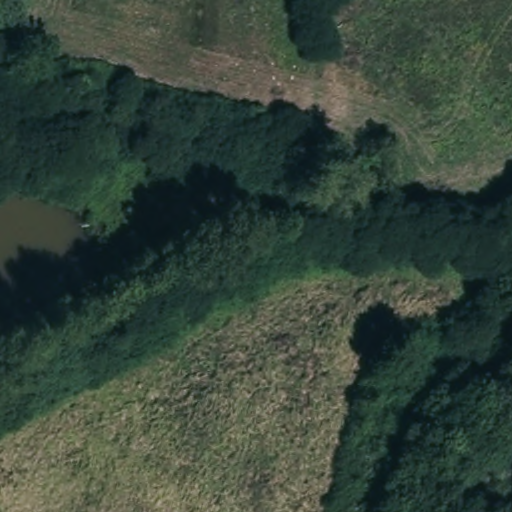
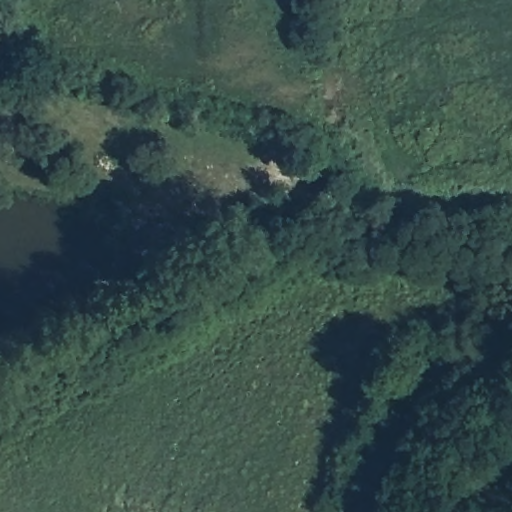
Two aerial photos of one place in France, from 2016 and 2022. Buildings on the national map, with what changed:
[]

